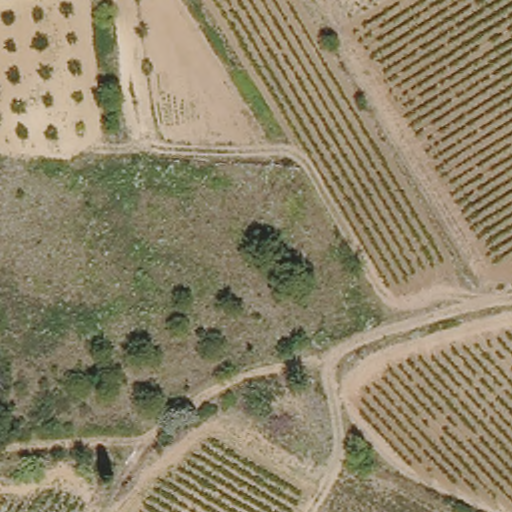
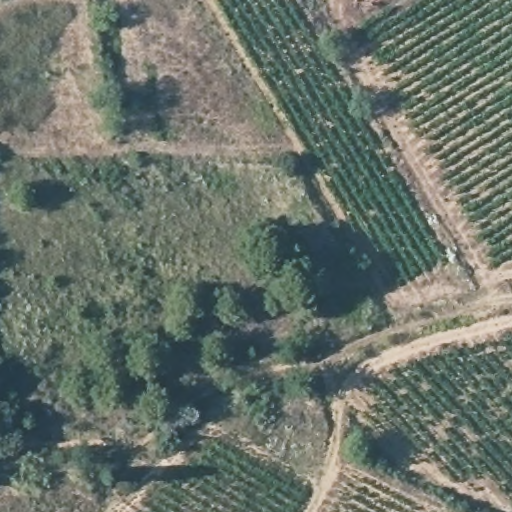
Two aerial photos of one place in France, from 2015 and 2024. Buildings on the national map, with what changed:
[]

